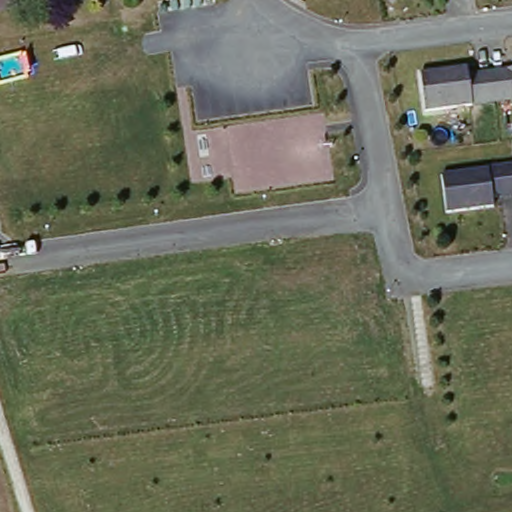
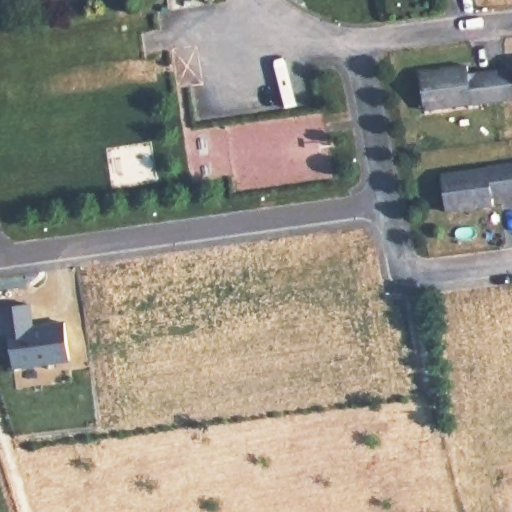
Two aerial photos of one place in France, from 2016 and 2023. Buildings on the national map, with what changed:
unchanged [(510,64),(512,64),(512,97),(429,108),(425,69),(471,63),(472,69),(481,67),(510,64)]
unchanged [(505,195),(494,197),(494,208),(448,214),(443,175),(512,166),(512,198),(505,199),(505,195)]
new [(31,327),(64,323),(69,360),(13,368),(10,348),(4,349),(0,323),(0,308),(28,304),(31,327)]

